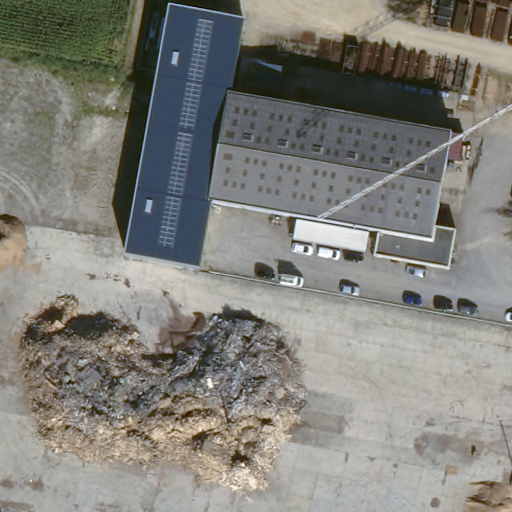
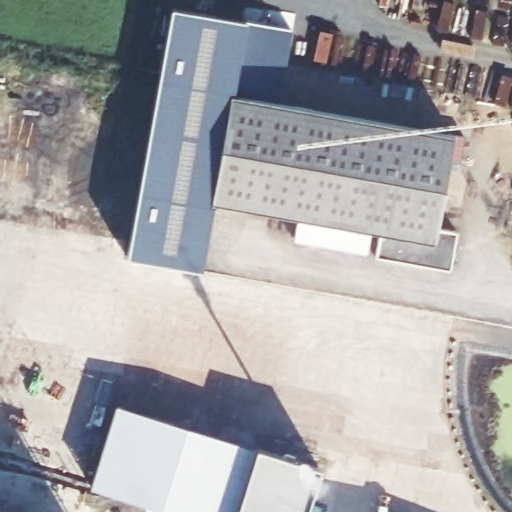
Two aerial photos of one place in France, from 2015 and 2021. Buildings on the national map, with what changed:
unchanged [(200,269),(126,255),(171,7),(245,21),(232,95),(223,94),(220,110),(203,205),(212,207),(200,269)]
unchanged [(450,133),(441,173),(431,225),(451,228),(447,248),(356,233),(203,205),(220,110),(223,94),(450,133)]
new [(256,447),(237,512),(166,512),(91,489),(117,404),(256,447)]
new [(320,466),(306,512),(237,512),(256,447),(320,466)]

